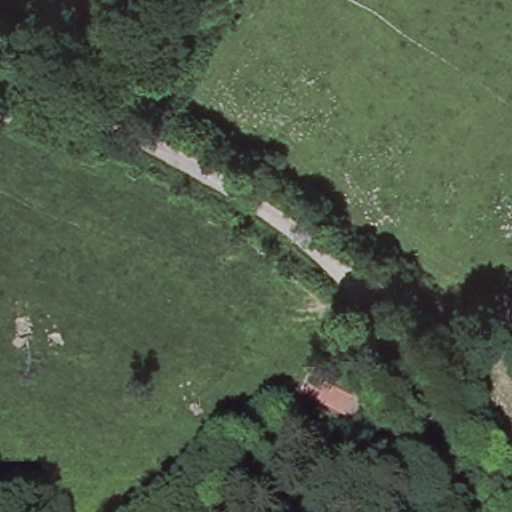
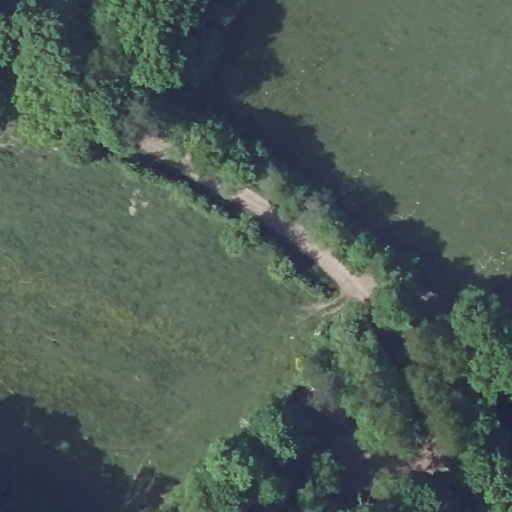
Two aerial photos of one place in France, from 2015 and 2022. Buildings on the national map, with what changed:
unchanged [(354,401),(344,420),(314,404),(324,385),(354,401)]

